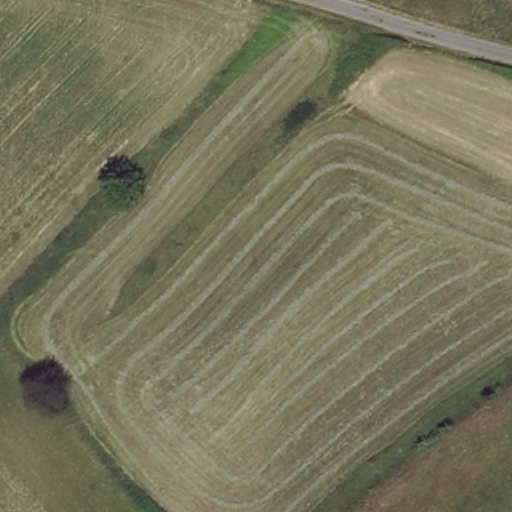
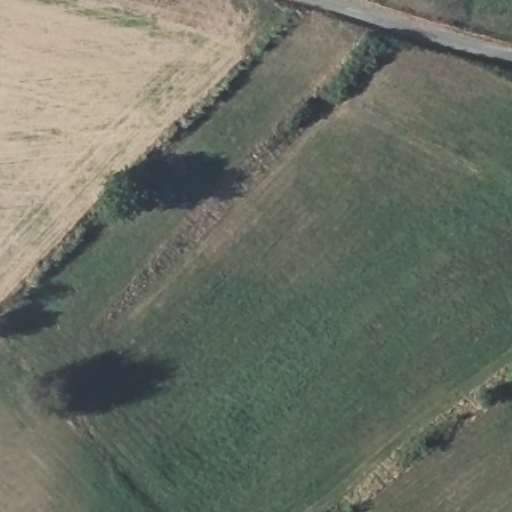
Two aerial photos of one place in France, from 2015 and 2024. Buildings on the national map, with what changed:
[]

